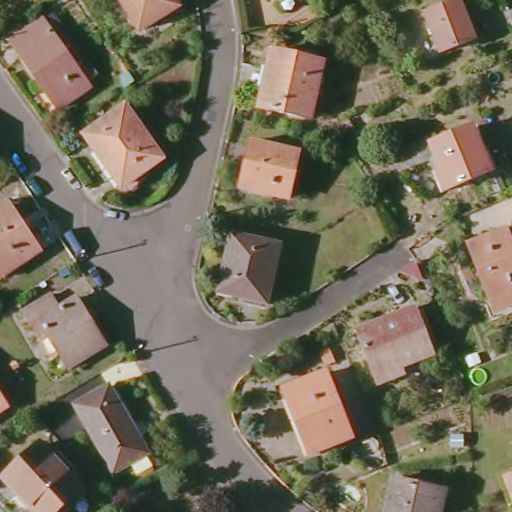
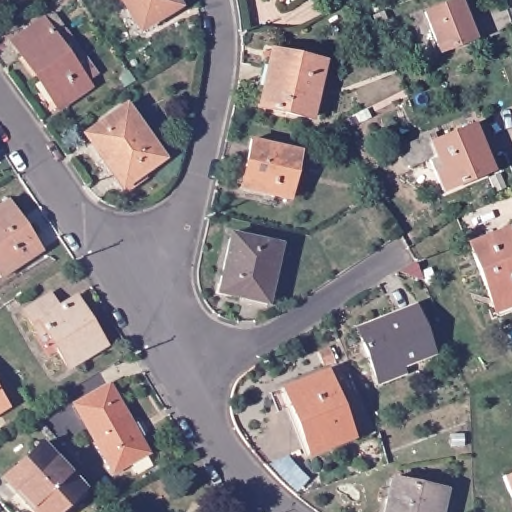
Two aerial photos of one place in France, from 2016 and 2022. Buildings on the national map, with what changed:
unchanged [(121,0),(170,0),(174,7),(139,29),(121,0)]
unchanged [(270,0),(283,0),(274,6),(270,0)]
unchanged [(422,15),(457,2),(471,40),(437,52),(422,15)]
unchanged [(26,52),(23,53),(14,40),(47,18),(91,87),(61,107),(26,52)]
unchanged [(272,50),(323,61),(311,117),(261,106),(272,50)]
unchanged [(84,137),(120,112),(155,166),(119,190),(84,137)]
unchanged [(439,162),(412,173),(404,154),(431,142),(433,148),(474,132),(491,176),(444,196),(437,179),(444,176),(439,162)]
unchanged [(252,144),(299,154),(288,200),(243,190),(252,144)]
unchanged [(489,186),(499,182),(505,196),(495,200),(489,186)]
unchanged [(37,255),(0,280),(0,207),(4,205),(37,255)]
unchanged [(467,246),(504,231),(512,253),(512,304),(492,312),(467,246)]
unchanged [(225,238),(274,250),(261,307),(227,301),(229,293),(213,290),(225,238)]
unchanged [(44,330),(38,333),(24,312),(50,296),(57,308),(75,298),(104,345),(67,367),(44,330)]
unchanged [(356,332),(413,307),(432,355),(399,368),(402,375),(376,386),(356,332)]
unchanged [(282,393),(322,376),(349,442),(304,459),(284,408),(288,407),(282,393)]
unchanged [(74,406),(107,386),(146,450),(112,471),(74,406)]
unchanged [(0,410),(0,404),(3,408),(0,410)]
unchanged [(41,445),(80,491),(56,512),(30,512),(2,480),(41,445)]
unchanged [(512,471),(512,505),(501,476),(512,471)]
unchanged [(442,486),(436,512),(380,512),(389,473),(442,486)]

